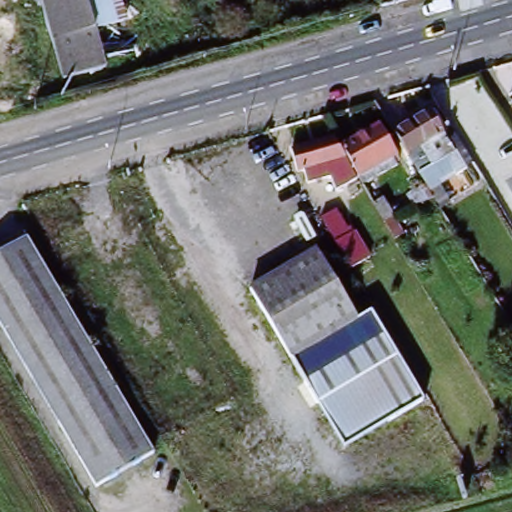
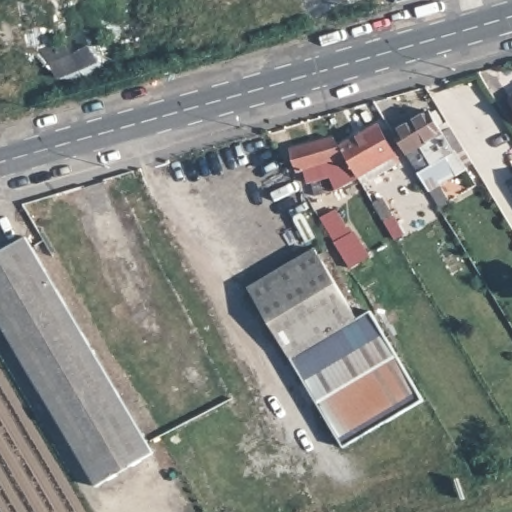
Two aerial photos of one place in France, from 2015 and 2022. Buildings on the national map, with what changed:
demolished [(95,26),(97,35),(100,50),(102,56),(64,66),(45,0),(88,0),(95,26)]
unchanged [(512,94),(512,105),(507,97),(512,94)]
unchanged [(442,184),(427,192),(405,154),(392,128),(429,105),(446,132),(467,171),(442,184)]
unchanged [(342,142),(376,122),(398,156),(365,177),(342,142)]
unchanged [(334,135),(344,151),(347,156),(327,169),(327,174),(303,180),(300,165),(295,166),(289,147),(334,135)]
unchanged [(347,217),(368,252),(347,265),(317,215),(330,205),(340,220),(347,217)]
unchanged [(0,252),(27,236),(155,451),(97,485),(0,319),(0,252)]
unchanged [(291,354),(248,282),(307,248),(350,320),(291,354)]
unchanged [(350,320),(361,313),(415,402),(344,445),(291,354),(350,320)]

